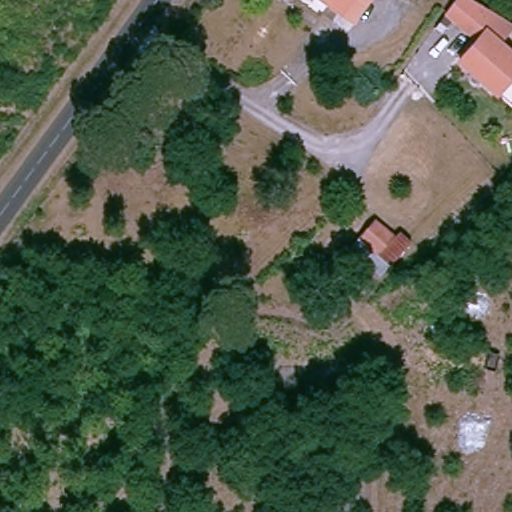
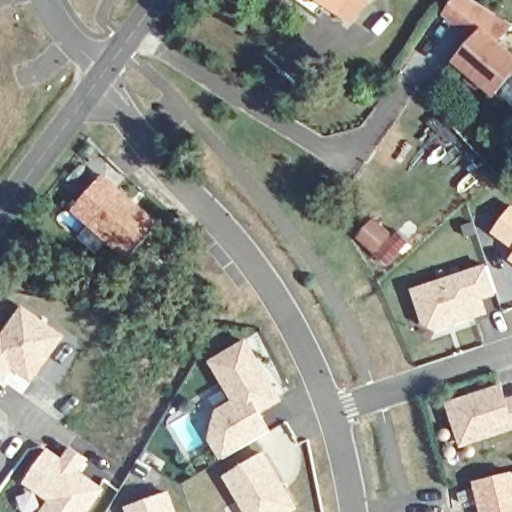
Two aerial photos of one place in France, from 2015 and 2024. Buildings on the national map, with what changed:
unchanged [(319,0),(358,0),(344,19),(319,0)]
unchanged [(496,104),(491,100),(455,74),(472,50),(457,39),(434,22),(448,3),(466,14),(504,37),(493,52),(512,66),(512,81),(501,96),(496,104)]
new [(128,255),(73,210),(103,175),(161,222),(128,255)]
new [(512,206),(512,248),(492,232),(512,206)]
new [(374,222),(393,238),(398,232),(409,241),(391,263),(361,239),(374,222)]
new [(512,260),(510,259),(512,256),(512,260)]
new [(423,323),(412,287),(485,263),(497,293),(484,298),(489,312),(437,330),(423,323)]
new [(2,330),(22,304),(65,335),(30,383),(14,371),(3,386),(0,384),(0,328),(2,330)]
new [(216,409),(233,400),(210,360),(247,338),(283,398),(262,411),(273,430),(221,458),(209,440),(216,409)]
new [(447,401),(503,384),(506,397),(512,395),(512,429),(460,445),(447,401)]
new [(20,483),(48,445),(62,455),(71,443),(92,457),(83,471),(106,487),(89,512),(22,512),(15,496),(27,487),(20,483)]
new [(247,512),(225,476),(265,450),(298,506),(288,512),(247,512)]
new [(512,471),(512,512),(481,512),(473,480),(512,471)]
new [(128,512),(125,506),(170,490),(178,512),(128,512)]

